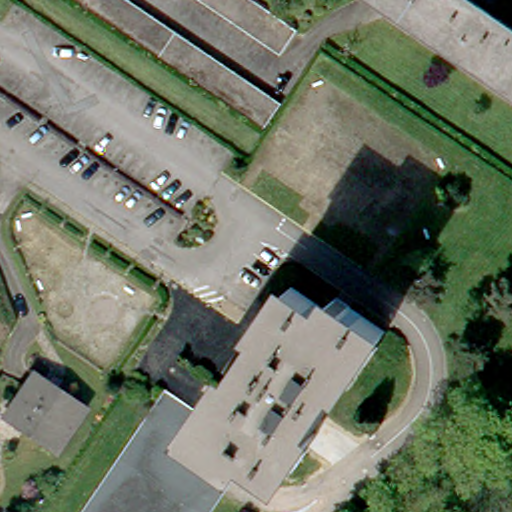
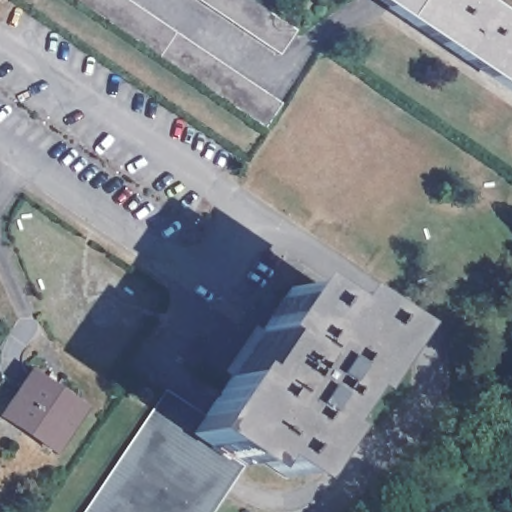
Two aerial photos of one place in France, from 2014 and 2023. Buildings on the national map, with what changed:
unchanged [(124,34),(112,27),(102,19),(90,11),(77,3),(73,0),(128,0),(130,1),(142,9),(154,17),(165,25),(176,33),(188,41),(195,46),(199,48),(210,56),(222,64),(234,72),(246,80),(257,88),(270,97),(282,105),(265,131),(252,122),(240,114),(229,106),(217,98),(205,90),(194,82),(182,74),(171,67),(159,58),(147,51),(137,43),(124,34)]
unchanged [(262,1),(268,5),(274,9),(285,17),(297,25),(280,50),(270,43),(269,42),(257,34),(246,27),(241,23),(233,18),(222,11),(212,4),(210,3),(206,0),(260,0),(262,1)]
unchanged [(512,25),(512,88),(383,0),(476,0),(512,25)]
unchanged [(227,376),(234,380),(265,333),(259,330),(288,286),(324,309),(332,296),(382,330),(344,387),(337,382),(306,428),(312,433),(284,477),(249,452),(240,465),(237,463),(189,432),(200,415),(227,376)]
unchanged [(85,404),(56,446),(5,410),(34,369),(85,404)]
unchanged [(200,415),(189,432),(237,463),(240,465),(208,512),(80,512),(163,389),(200,415)]

